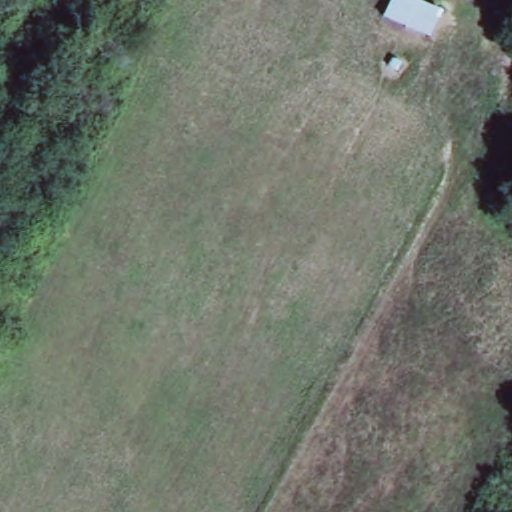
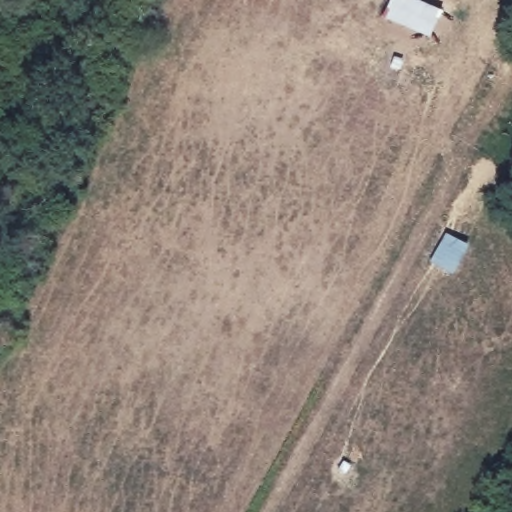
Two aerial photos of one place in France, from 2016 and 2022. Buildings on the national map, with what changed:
unchanged [(381,17),(389,0),(415,0),(438,10),(427,38),(381,17)]

